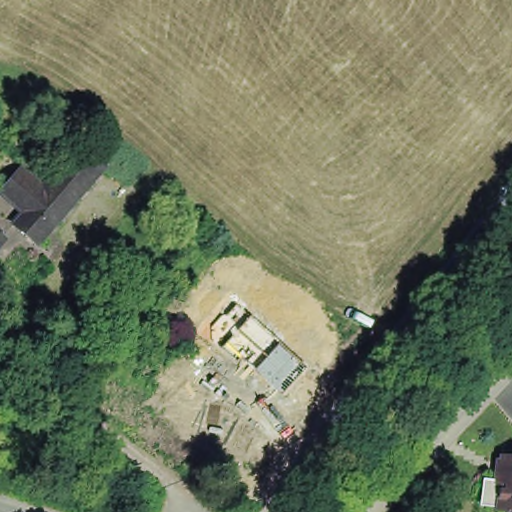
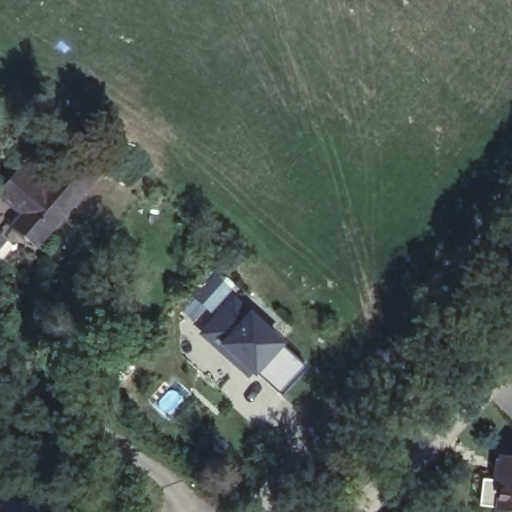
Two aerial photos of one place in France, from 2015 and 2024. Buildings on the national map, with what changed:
unchanged [(36,249),(13,228),(23,216),(0,196),(0,195),(20,172),(45,194),(82,150),(105,170),(36,249)]
unchanged [(0,245),(0,229),(7,235),(0,245)]
new [(249,311),(285,345),(306,365),(281,393),(260,372),(255,377),(251,374),(248,378),(201,335),(233,297),(249,311)]
unchanged [(495,452),(512,454),(512,512),(491,512),(495,452)]

